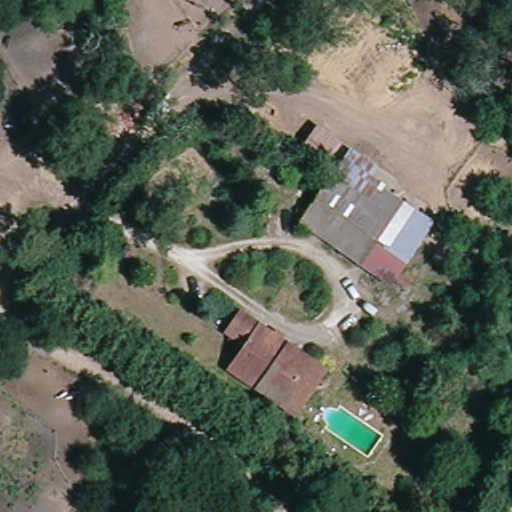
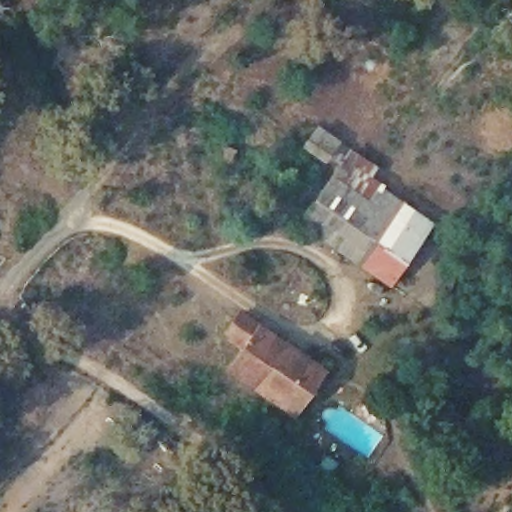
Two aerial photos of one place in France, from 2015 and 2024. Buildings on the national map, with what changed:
unchanged [(227,164),(214,157),(222,143),(235,150),(227,164)]
unchanged [(353,260),(300,223),(342,163),(350,152),(373,168),(365,179),(393,198),(353,260)]
unchanged [(377,276),(353,260),(393,198),(417,215),(377,276)]
unchanged [(430,224),(389,285),(377,276),(417,215),(430,224)]
unchanged [(293,415),(279,406),(269,399),(229,370),(246,347),(242,344),(241,346),(230,339),(232,337),(226,333),(240,314),(288,348),(310,363),(323,373),(293,415)]

